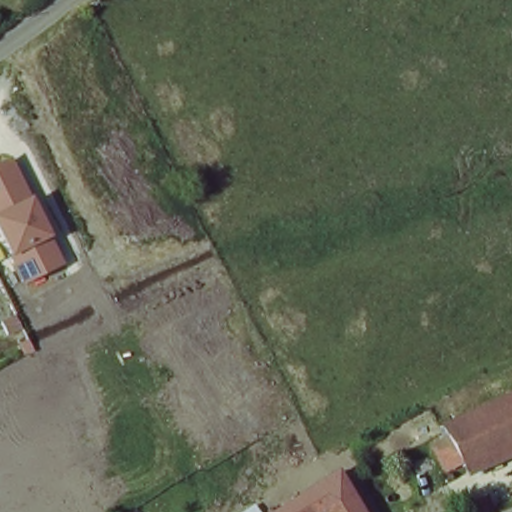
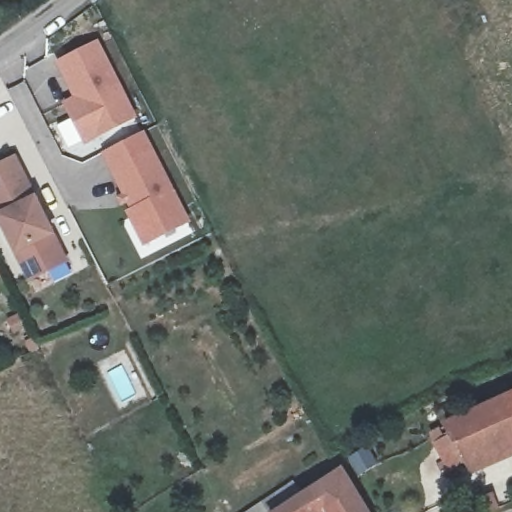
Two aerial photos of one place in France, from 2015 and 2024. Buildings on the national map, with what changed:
new [(73,97),(55,63),(98,39),(139,118),(85,144),(62,103),(73,97)]
new [(141,245),(124,209),(128,208),(125,203),(120,205),(115,196),(122,193),(101,151),(145,131),(189,221),(141,245)]
unchanged [(29,279),(0,221),(0,166),(13,159),(60,251),(65,261),(52,268),(29,279)]
unchanged [(512,394),(512,449),(467,471),(441,427),(490,401),(512,394)]
unchanged [(331,512),(326,503),(312,512),(266,512),(266,511),(338,468),(340,467),(367,512),(331,512)]
unchanged [(473,512),(470,505),(492,492),(502,508),(493,512),(473,512)]

